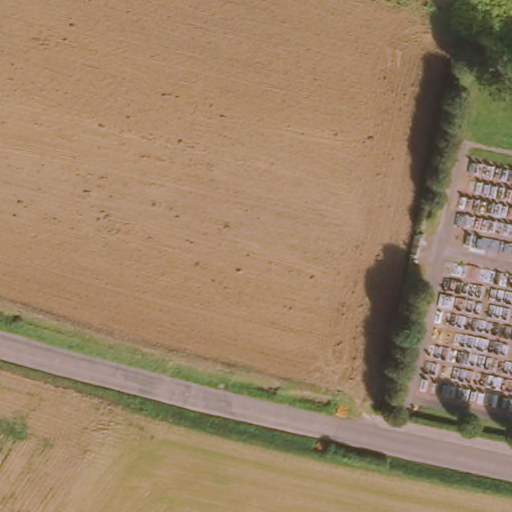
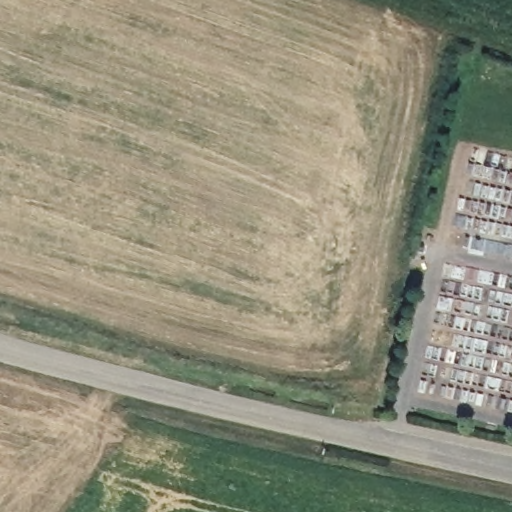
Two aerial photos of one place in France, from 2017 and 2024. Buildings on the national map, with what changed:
unchanged [(422,262),(412,259),(418,234),(428,236),(422,262)]

